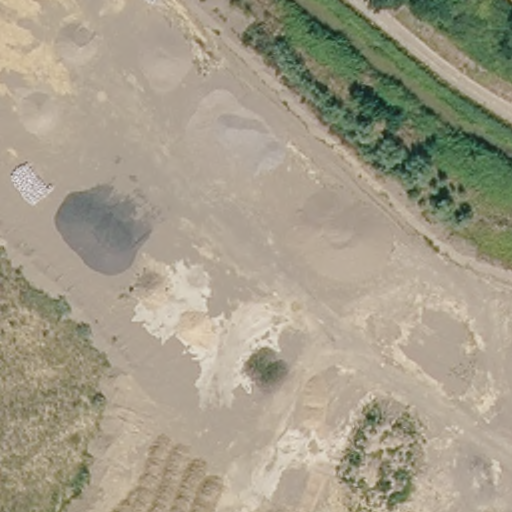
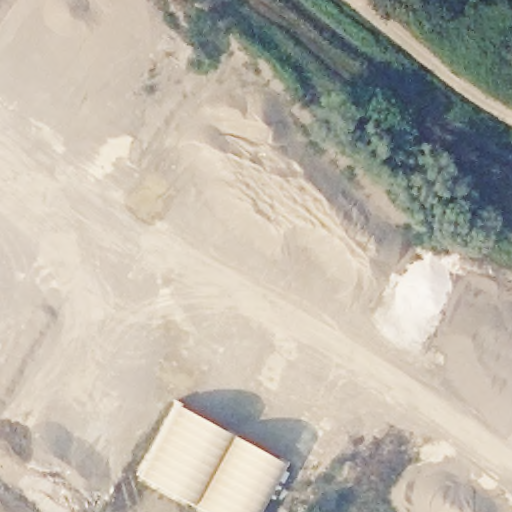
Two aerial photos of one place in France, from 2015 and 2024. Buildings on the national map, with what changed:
new [(283,459),(279,469),(258,512),(208,512),(134,473),(173,401),(283,459)]

